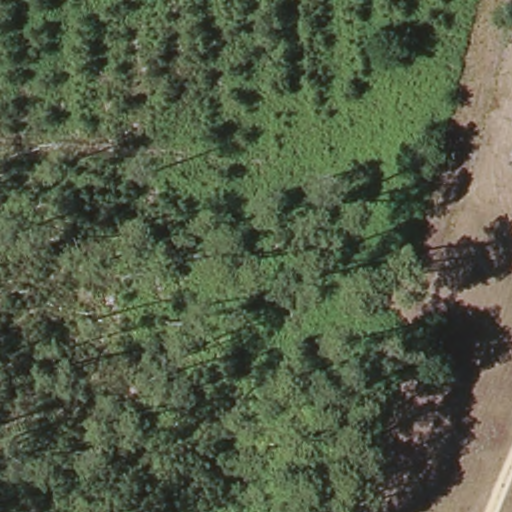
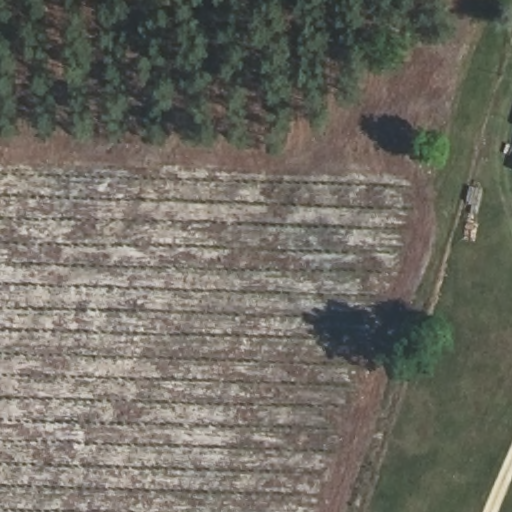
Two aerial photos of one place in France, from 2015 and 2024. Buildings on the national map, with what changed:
unchanged [(512,150),(512,174),(505,171),(512,150)]

